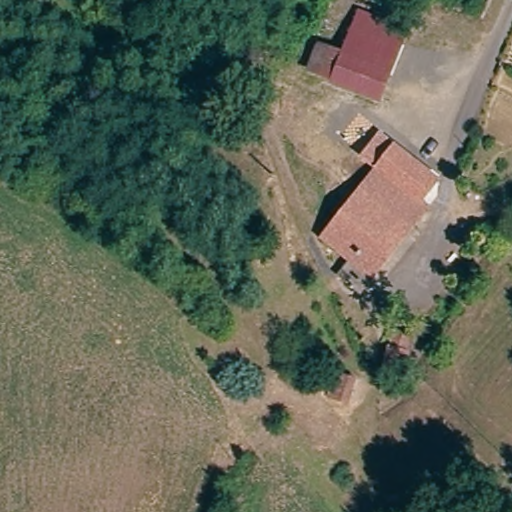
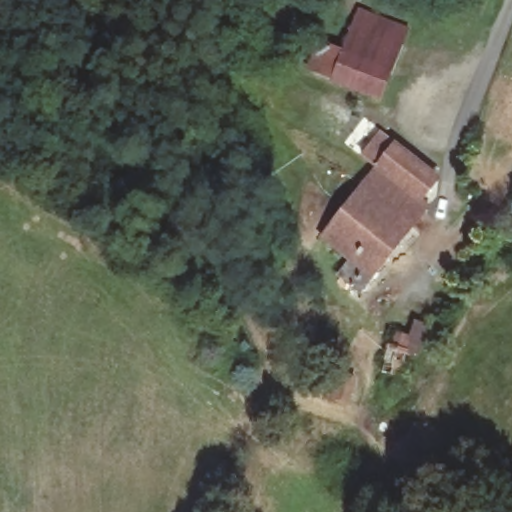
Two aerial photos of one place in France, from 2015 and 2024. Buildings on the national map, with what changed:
unchanged [(396,67),(383,104),(329,86),(298,73),(308,34),(341,40),(356,7),(412,26),(396,67)]
unchanged [(430,189),(438,199),(360,298),(334,276),(346,263),(318,238),(375,172),(362,156),(380,133),(440,171),(430,189)]
unchanged [(415,338),(401,377),(383,371),(397,332),(415,338)]
unchanged [(356,376),(347,402),(331,396),(340,371),(356,376)]

